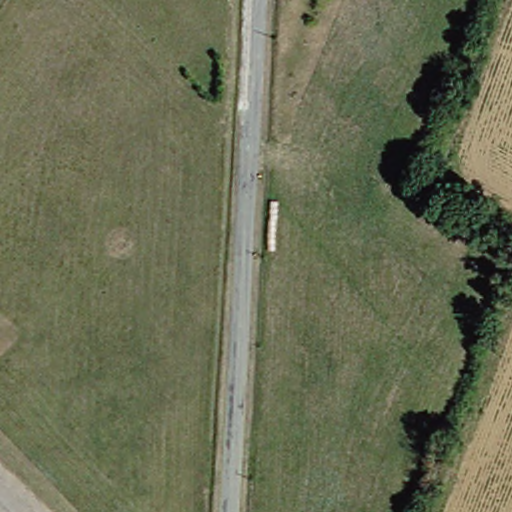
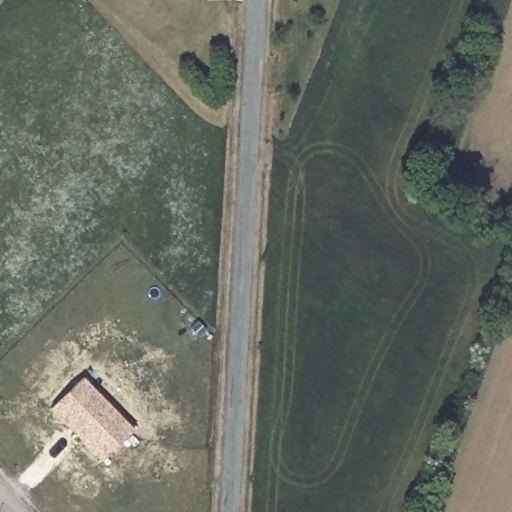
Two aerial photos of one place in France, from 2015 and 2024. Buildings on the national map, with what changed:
new [(100,462),(49,411),(81,378),(132,430),(100,462)]

